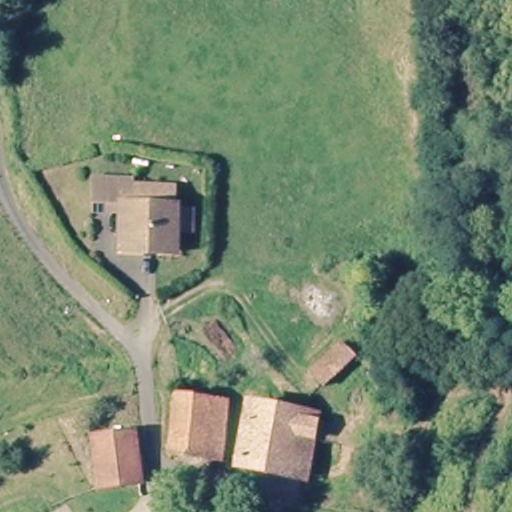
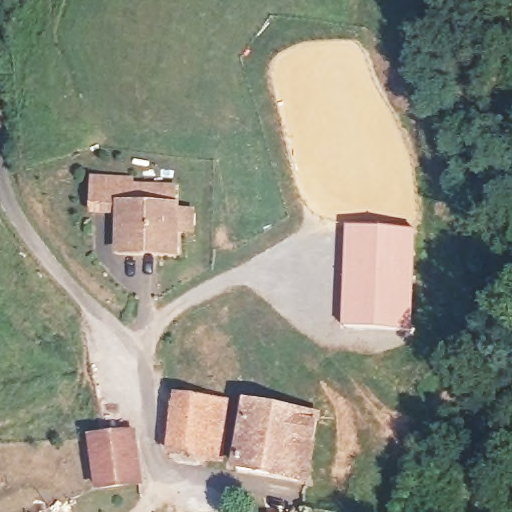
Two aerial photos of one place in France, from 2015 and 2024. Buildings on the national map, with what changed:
unchanged [(206,239),(191,238),(190,260),(135,258),(136,221),(109,220),(110,185),(150,187),(150,193),(191,195),(190,215),(192,215),(207,215),(206,239)]
new [(346,225),(414,229),(410,330),(342,326),(346,225)]
demolished [(360,355),(333,386),(319,374),(346,343),(360,355)]
unchanged [(219,462),(168,456),(176,394),(227,399),(219,462)]
unchanged [(314,417),(303,480),(235,470),(246,406),(314,417)]
unchanged [(134,438),(139,486),(108,491),(110,483),(98,483),(93,441),(122,439),(134,438)]

